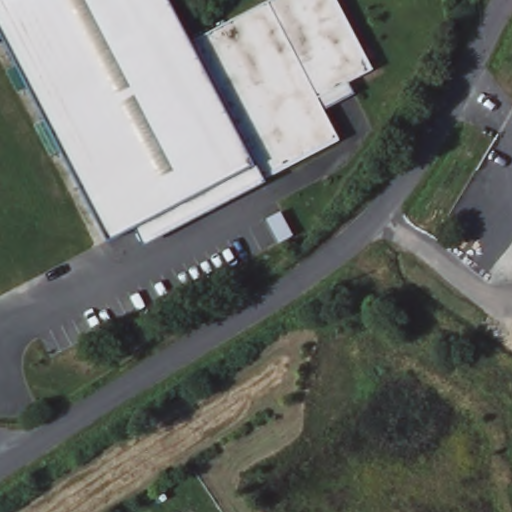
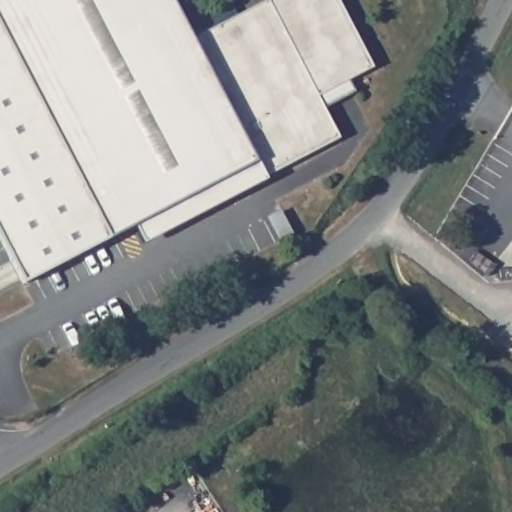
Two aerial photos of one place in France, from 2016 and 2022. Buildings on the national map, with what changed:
unchanged [(185,32),(254,0),(336,0),(371,68),(345,82),(351,92),(321,106),(338,141),(262,178),(145,239),(137,222),(110,234),(12,44),(0,45),(0,0),(168,0),(185,32)]
new [(12,44),(110,234),(25,280),(0,234),(0,45),(12,44)]

